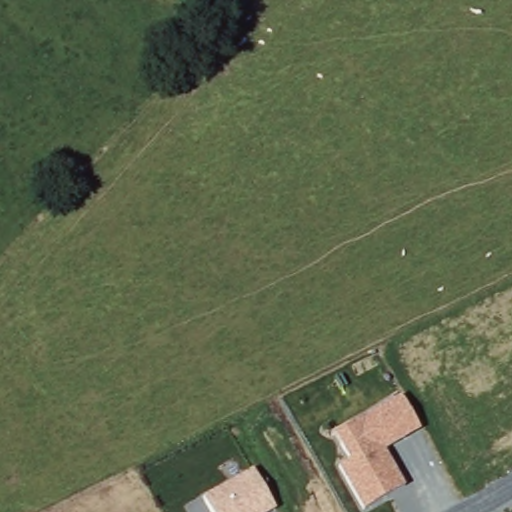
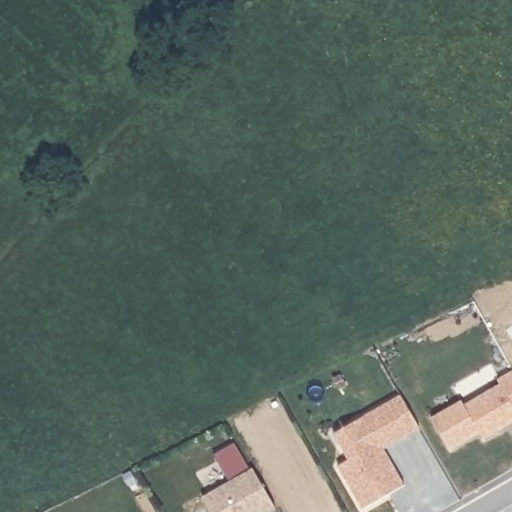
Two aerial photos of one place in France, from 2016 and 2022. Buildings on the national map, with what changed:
new [(463,404),(500,384),(497,380),(512,372),(512,420),(482,439),(479,434),(450,450),(432,417),(461,400),(463,404)]
unchanged [(421,430),(385,450),(405,487),(362,510),(337,465),(348,460),(334,434),(401,395),(421,430)]
unchanged [(253,469),(276,507),(268,512),(210,512),(202,500),(253,469)]

